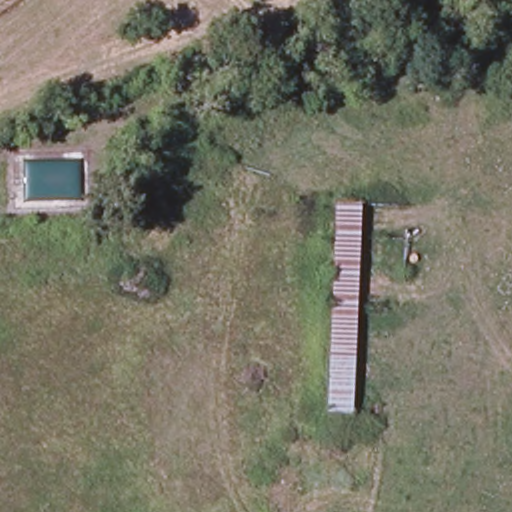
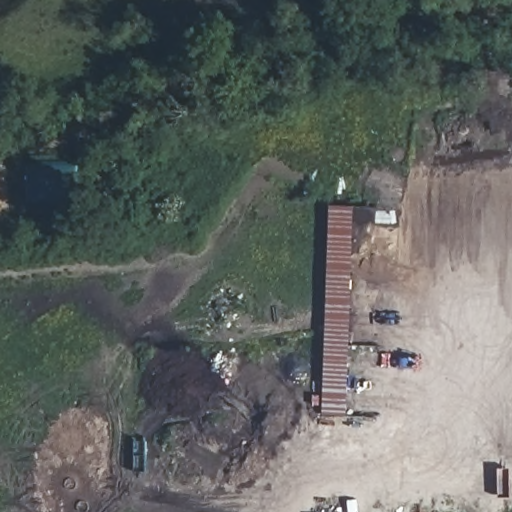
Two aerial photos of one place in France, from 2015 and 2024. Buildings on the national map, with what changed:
unchanged [(354,207),(347,419),(322,417),(328,208),(354,207)]

